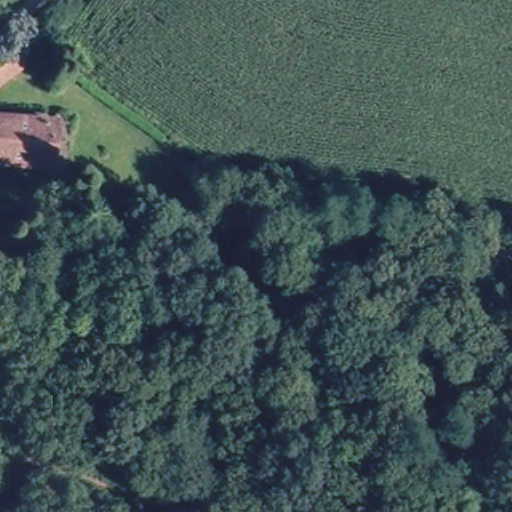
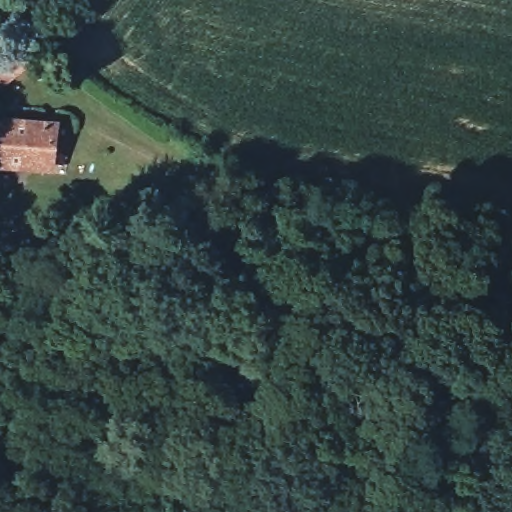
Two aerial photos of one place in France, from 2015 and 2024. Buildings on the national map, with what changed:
unchanged [(49,165),(0,161),(0,118),(51,122),(49,165)]

